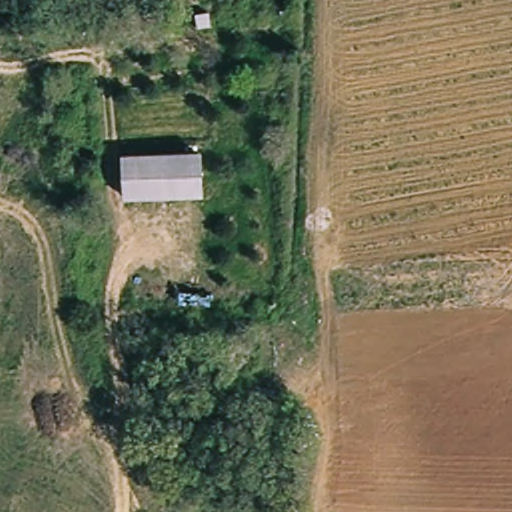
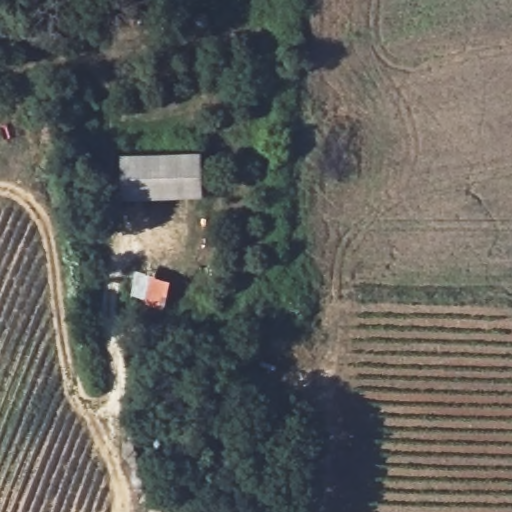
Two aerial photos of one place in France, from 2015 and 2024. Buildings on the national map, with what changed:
unchanged [(197,199),(120,202),(117,160),(194,155),(197,199)]

